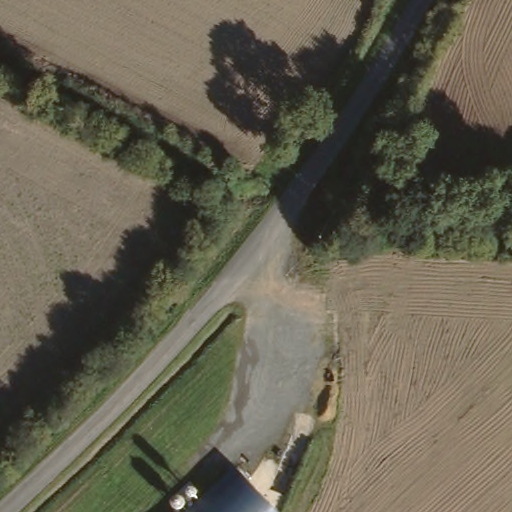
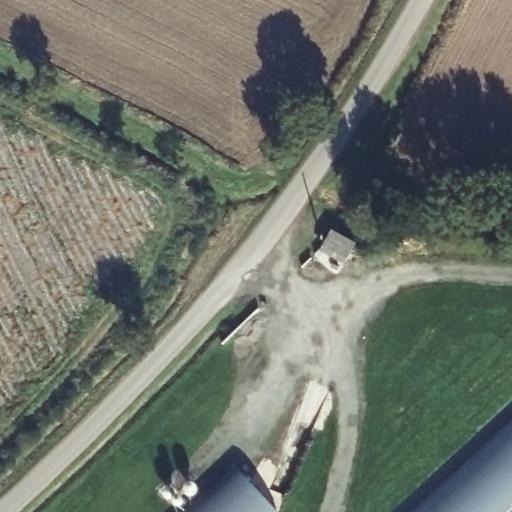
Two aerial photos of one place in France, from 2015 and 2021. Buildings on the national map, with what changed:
new [(512,423),(512,508),(507,512),(415,512),(512,423)]
unchanged [(272,512),(179,512),(230,464),(275,510),(272,512)]

